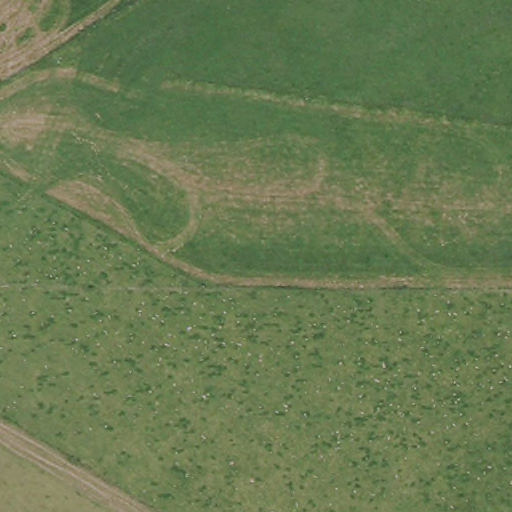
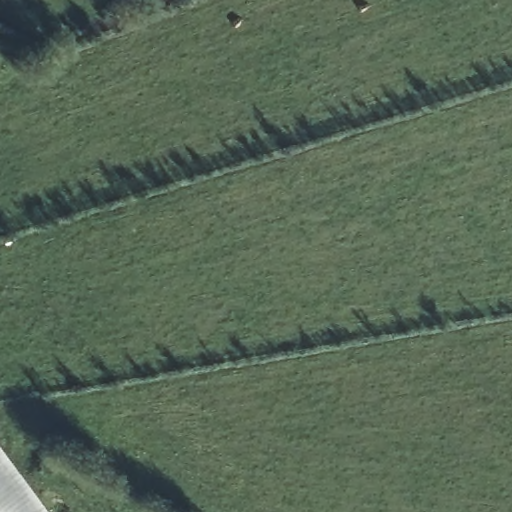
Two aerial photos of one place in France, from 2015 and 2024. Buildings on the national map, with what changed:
new [(50,512),(0,512),(0,446),(50,512)]

